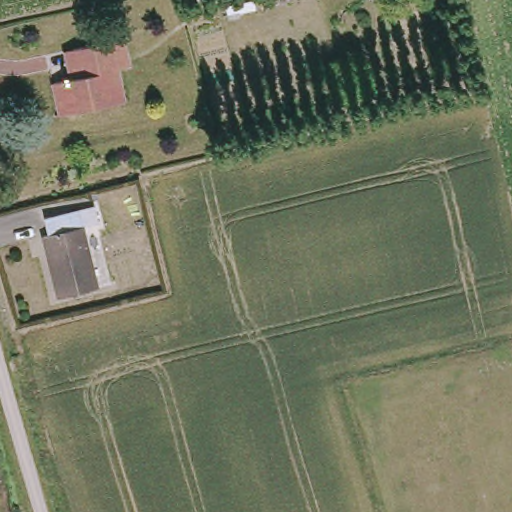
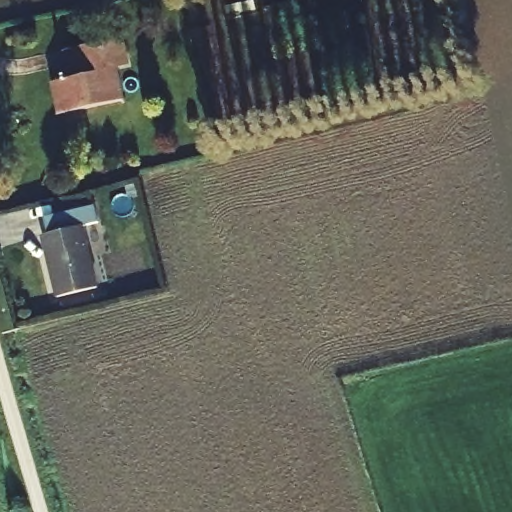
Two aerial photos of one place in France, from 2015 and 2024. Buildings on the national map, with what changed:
unchanged [(132,51),(119,55),(129,97),(68,111),(61,79),(84,76),(78,46),(127,34),(132,51)]
unchanged [(80,203),(85,226),(90,225),(100,274),(102,286),(66,293),(48,232),(55,230),(50,210),(63,207),(80,203)]

